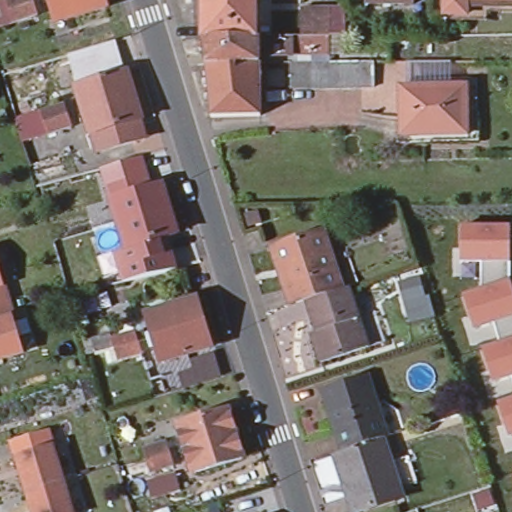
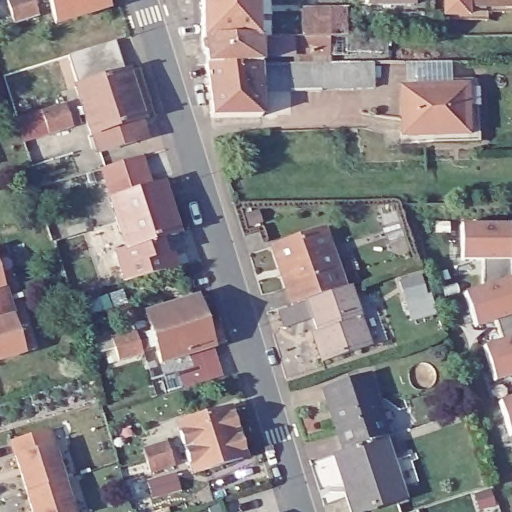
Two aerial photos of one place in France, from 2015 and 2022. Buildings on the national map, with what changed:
unchanged [(35,13),(11,21),(5,0),(31,0),(35,13)]
unchanged [(106,8),(55,24),(48,0),(103,0),(106,8)]
unchanged [(262,37),(206,37),(206,0),(261,0),(262,37)]
unchanged [(413,9),(368,8),(369,0),(414,0),(413,9)]
unchanged [(439,20),(440,0),(469,0),(469,25),(448,24),(439,24),(439,20)]
unchanged [(471,3),(512,4),(512,18),(482,17),(482,25),(469,25),(469,0),(472,0),(471,3)]
unchanged [(472,0),(512,0),(512,4),(471,3),(472,0)]
unchanged [(318,38),(318,54),(284,54),(284,37),(306,36),(305,9),(350,9),(350,36),(320,36),(320,38),(318,38)]
unchanged [(206,37),(262,37),(264,62),(210,63),(206,37)]
unchanged [(295,62),(323,61),(341,61),(380,60),(380,87),(341,87),(324,87),(295,88),(295,62)]
unchanged [(264,62),(265,115),(216,116),(210,63),(264,62)]
unchanged [(91,130),(90,131),(75,83),(125,67),(140,114),(137,115),(143,133),(135,136),(96,148),(91,130)]
unchanged [(470,134),(401,135),(401,123),(401,85),(468,85),(469,121),(470,134)]
unchanged [(52,105),(60,130),(36,138),(28,112),(52,105)]
unchanged [(119,217),(110,185),(150,173),(160,204),(170,200),(178,225),(153,233),(155,236),(128,245),(126,241),(119,217)]
unchanged [(510,224),(510,261),(509,276),(512,286),(512,377),(511,376),(493,382),(482,348),(500,340),(490,323),(475,328),(463,291),(483,285),(483,261),(463,261),(462,224),(510,224)]
unchanged [(155,236),(153,233),(178,225),(186,250),(135,266),(128,245),(155,236)]
unchanged [(268,247),(318,232),(338,290),(303,301),(287,306),(268,247)]
unchanged [(10,298),(0,301),(0,266),(10,298)]
unchanged [(398,280),(418,274),(430,294),(435,317),(408,323),(398,280)]
unchanged [(365,348),(317,364),(310,341),(315,339),(303,301),(338,290),(346,287),(365,348)]
unchanged [(10,298),(25,350),(0,358),(0,301),(10,298)]
unchanged [(160,357),(149,320),(200,303),(216,352),(164,369),(160,357)]
unchanged [(132,309),(138,329),(122,334),(116,315),(132,309)]
unchanged [(122,369),(118,357),(98,363),(94,348),(113,342),(115,345),(138,337),(146,362),(122,369)]
unchanged [(385,440),(346,452),(327,392),(368,379),(376,404),(385,400),(390,415),(400,412),(406,432),(387,439),(385,440)]
unchanged [(498,402),(512,396),(512,436),(509,437),(498,402)]
unchanged [(229,409),(245,458),(192,474),(176,425),(229,409)]
unchanged [(11,437),(48,426),(63,478),(27,489),(11,437)]
unchanged [(392,464),(401,461),(406,478),(397,481),(403,499),(364,512),(356,512),(337,455),(346,452),(385,440),(392,464)]
unchanged [(171,447),(180,472),(155,480),(147,455),(171,447)]
unchanged [(74,512),(34,512),(27,489),(63,478),(74,512)]

